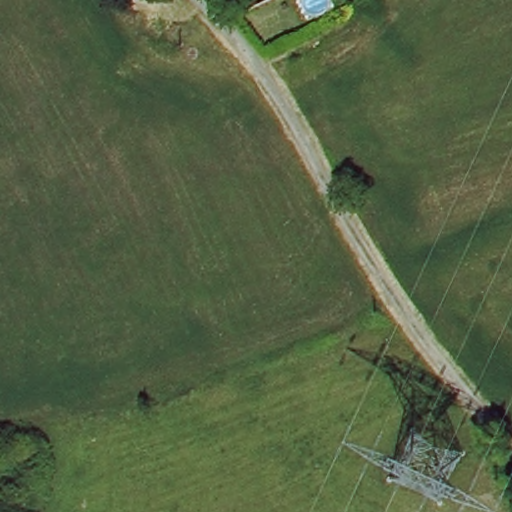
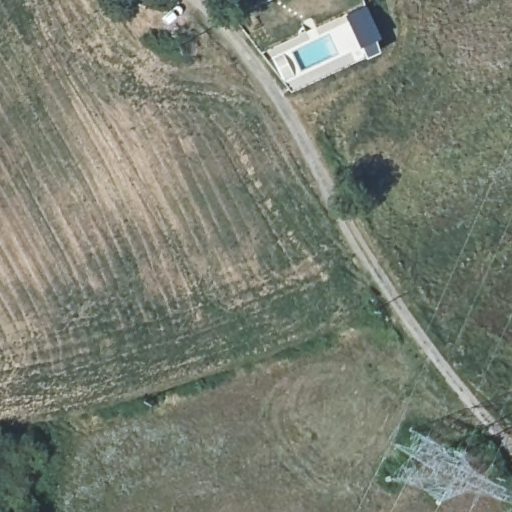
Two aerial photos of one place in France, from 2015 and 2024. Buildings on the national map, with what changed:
[]

